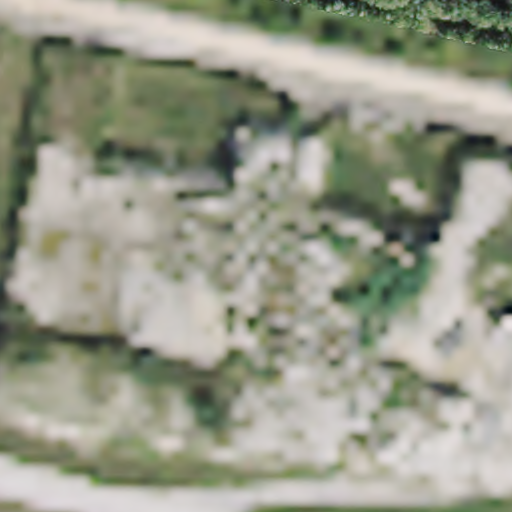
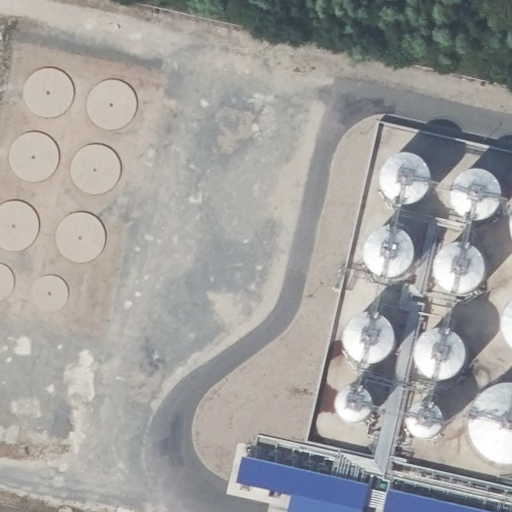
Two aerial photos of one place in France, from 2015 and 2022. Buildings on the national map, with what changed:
new [(369,486),(363,512),(291,512),(294,494),(245,458),(369,486)]
new [(390,489),(484,512),(384,512),(390,489)]

